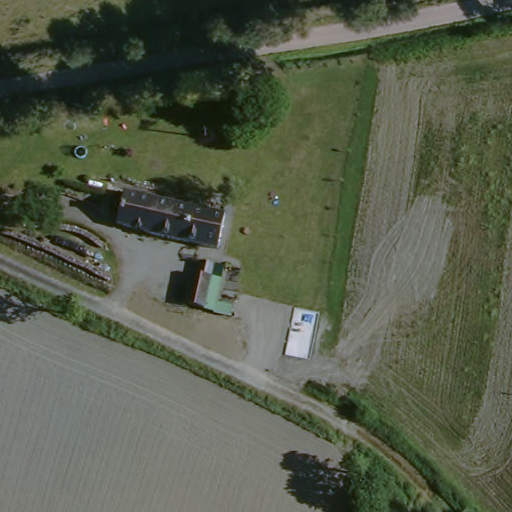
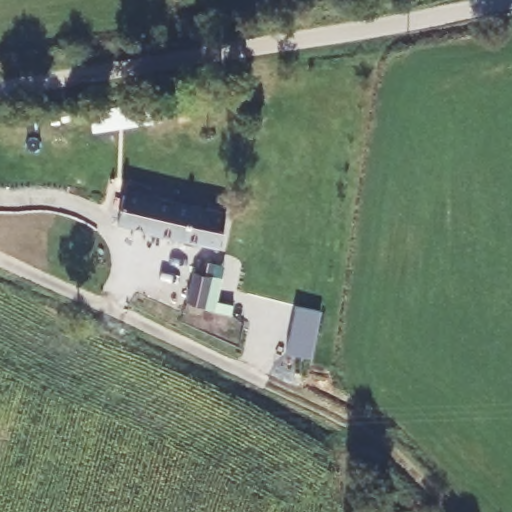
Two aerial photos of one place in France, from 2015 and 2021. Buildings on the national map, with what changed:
unchanged [(224,215),(214,255),(141,235),(114,228),(121,203),(123,194),(149,199),(184,207),(224,215)]
unchanged [(192,309),(198,277),(206,277),(207,267),(221,270),(211,313),(192,309)]
new [(296,306),(321,313),(311,361),(286,354),(296,306)]

